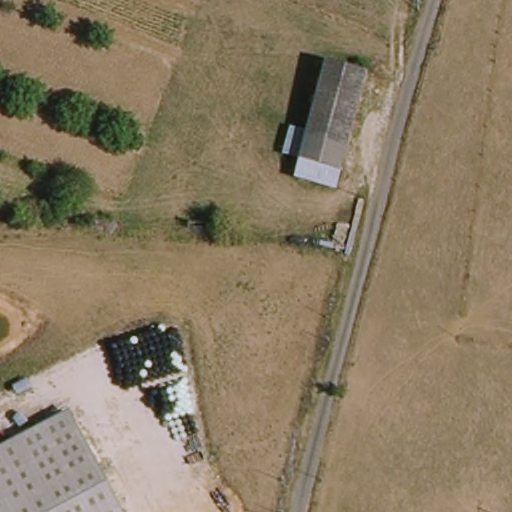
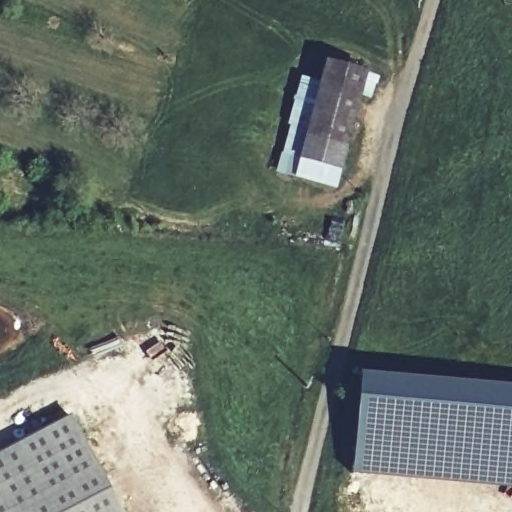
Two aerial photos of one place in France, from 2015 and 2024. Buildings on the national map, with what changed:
unchanged [(292,158),(323,63),(361,75),(332,170),(292,158)]
new [(351,475),(358,371),(512,386),(512,488),(351,475)]
unchanged [(123,512),(0,512),(0,454),(72,415),(123,512)]

